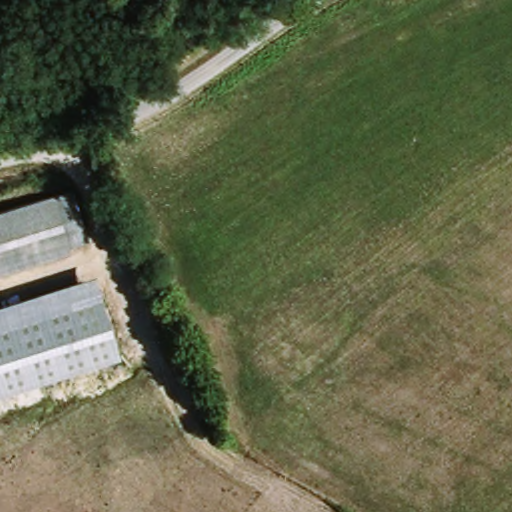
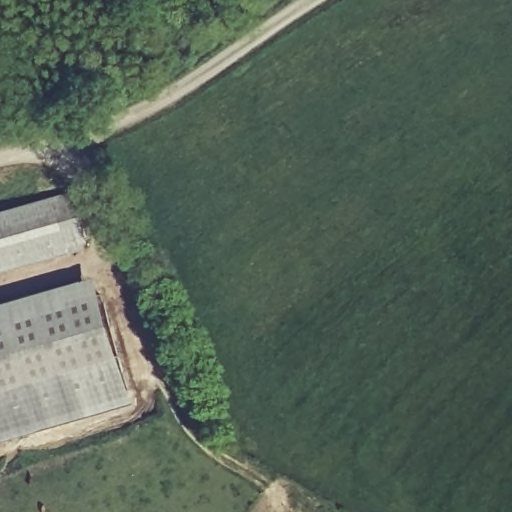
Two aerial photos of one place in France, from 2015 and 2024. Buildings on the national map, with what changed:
unchanged [(78,192),(93,247),(0,273),(0,214),(78,192)]
unchanged [(98,276),(123,359),(0,393),(0,305),(98,276)]
new [(123,359),(136,403),(0,441),(0,393),(123,359)]

